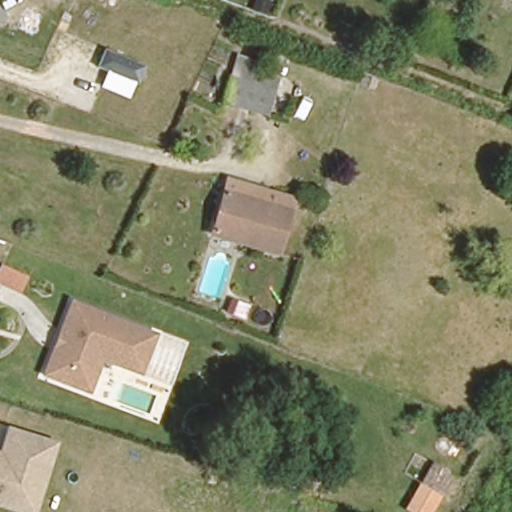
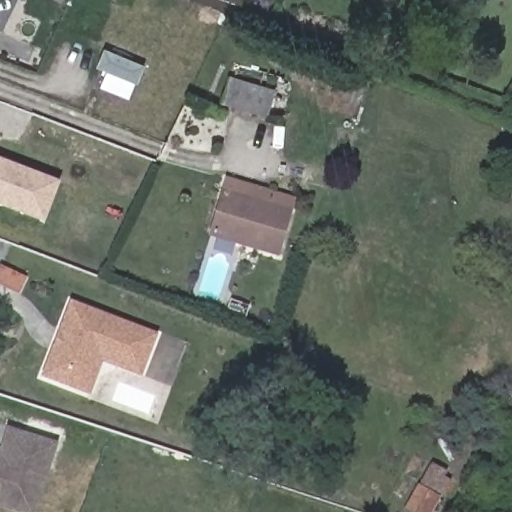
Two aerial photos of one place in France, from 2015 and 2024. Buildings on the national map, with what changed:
unchanged [(47,0),(74,0),(70,10),(47,0)]
unchanged [(99,86),(105,71),(93,68),(104,50),(143,66),(129,97),(99,86)]
unchanged [(220,95),(228,66),(276,78),(269,109),(220,95)]
new [(60,181),(44,223),(0,206),(0,158),(60,181)]
unchanged [(208,239),(223,195),(226,181),(295,203),(293,216),(280,258),(208,239)]
new [(27,275),(20,294),(0,287),(0,266),(27,275)]
unchanged [(156,331),(140,376),(101,360),(89,394),(39,375),(68,298),(156,331)]
unchanged [(6,432),(52,445),(41,480),(36,480),(28,506),(0,498),(0,455),(6,432)]
unchanged [(445,469),(441,476),(447,480),(440,493),(418,482),(430,462),(445,469)]

